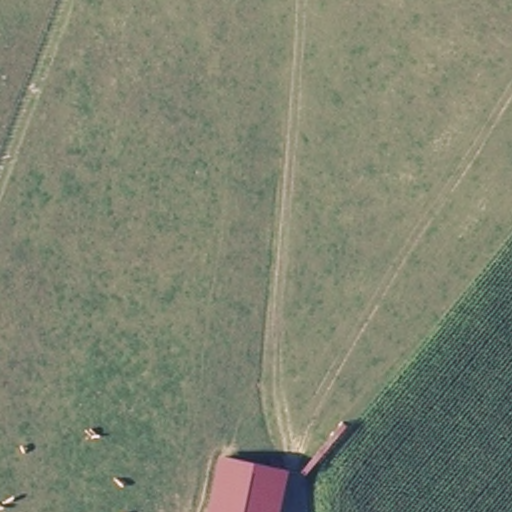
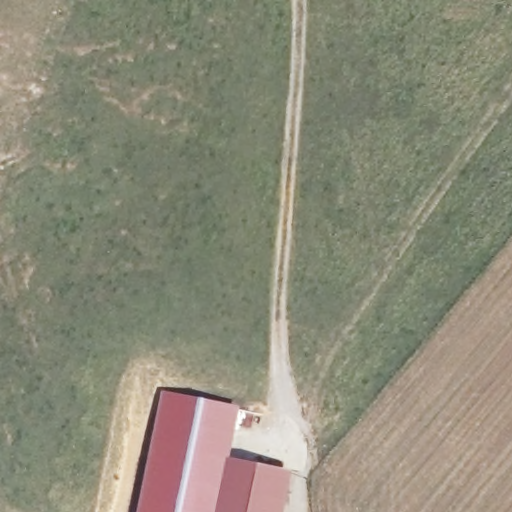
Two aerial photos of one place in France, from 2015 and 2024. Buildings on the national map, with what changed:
new [(238,407),(227,457),(221,455),(209,512),(136,512),(161,391),(238,407)]
unchanged [(221,455),(288,469),(280,512),(209,512),(221,455)]

